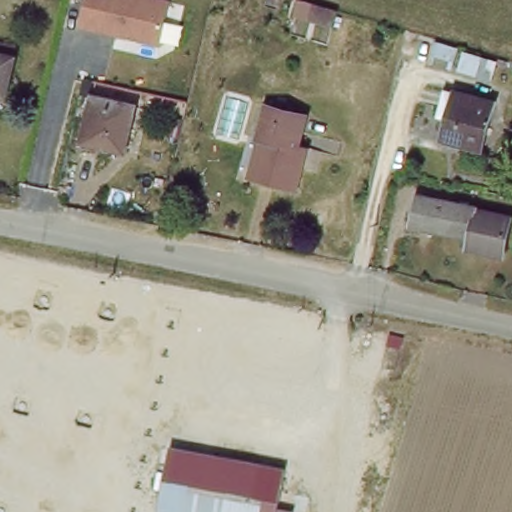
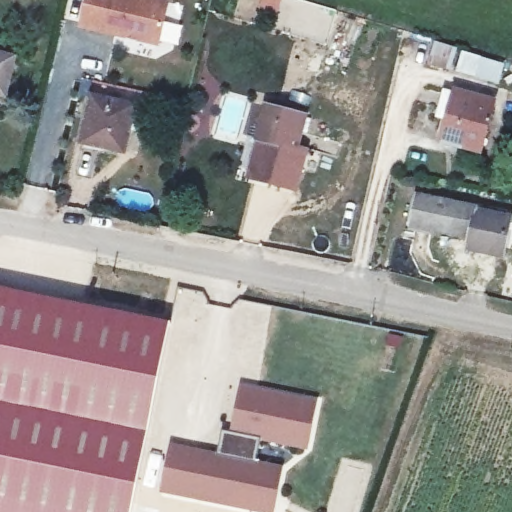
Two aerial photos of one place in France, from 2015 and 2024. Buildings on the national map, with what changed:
unchanged [(86,0),(162,0),(172,2),(160,48),(79,29),(86,0)]
unchanged [(328,19),(289,8),(291,0),(318,0),(332,4),(328,19)]
unchanged [(452,45),(446,62),(427,57),(432,40),(452,45)]
unchanged [(474,51),(469,69),(453,64),(458,47),(474,51)]
unchanged [(6,94),(0,92),(0,50),(17,55),(6,94)]
unchanged [(476,142),(439,130),(451,85),(488,97),(476,142)]
unchanged [(129,99),(119,144),(81,135),(91,89),(129,99)]
unchanged [(308,113),(299,145),(305,146),(295,185),(289,183),(256,174),(267,135),(258,133),(266,101),(308,113)]
unchanged [(473,201),(472,206),(508,215),(501,248),(464,240),(467,231),(408,218),(414,187),(473,201)]
new [(170,321),(130,512),(0,512),(0,288),(170,321)]
new [(219,453),(224,430),(231,432),(240,385),(319,401),(307,450),(261,440),(256,460),(284,466),(274,512),(256,512),(161,492),(170,443),(219,453)]
demolished [(170,439),(198,445),(272,458),(285,461),(278,499),(292,502),(290,512),(214,512),(159,501),(170,439)]
demolished [(33,460),(34,462),(34,465),(33,469),(31,470),(29,472),(28,474),(25,475),(23,475),(20,475),(18,475),(16,475),(14,473),(11,471),(10,470),(8,467),(8,465),(8,462),(8,460),(9,457),(10,455),(12,453),(15,451),(18,450),(21,450),(24,451),(27,451),(30,454),(32,457),(33,460)]
demolished [(69,466),(70,469),(71,472),(70,476),(69,478),(66,481),(64,482),(61,484),(58,484),(55,483),(52,483),(50,483),(47,481),(46,478),(45,476),(44,473),(44,470),(45,467),(46,465),(48,461),(52,460),(54,459),(57,458),(59,459),(62,460),(65,460),(68,463),(69,466)]

